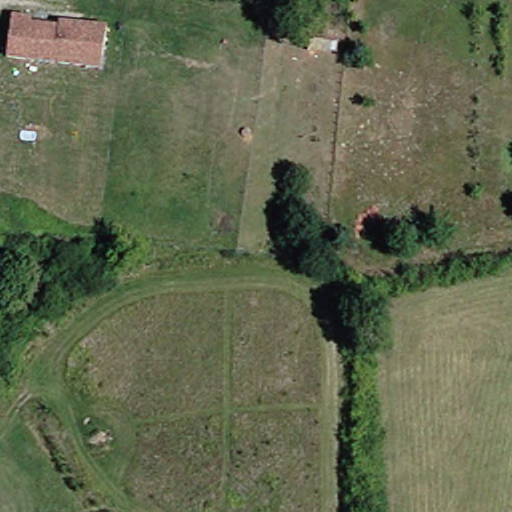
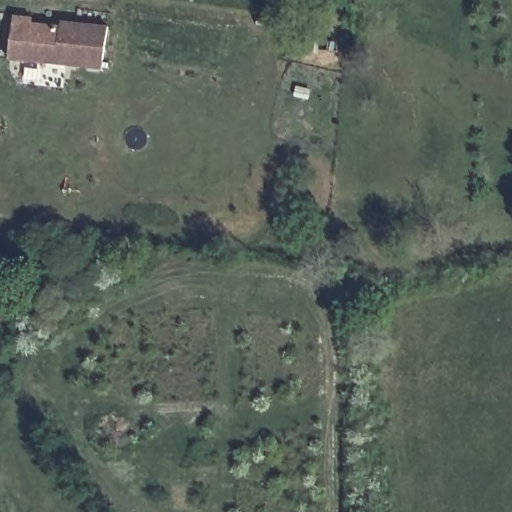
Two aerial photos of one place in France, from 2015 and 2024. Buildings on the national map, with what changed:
unchanged [(99,73),(5,61),(10,19),(28,20),(27,25),(57,29),(57,25),(75,26),(104,30),(99,73)]

